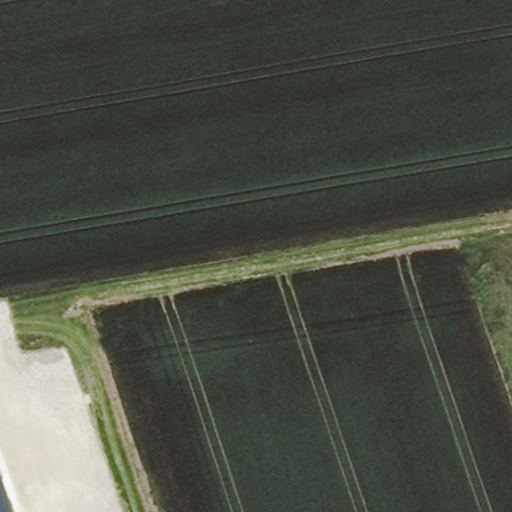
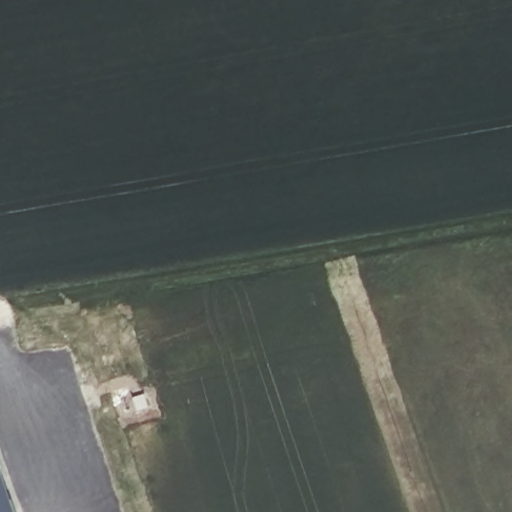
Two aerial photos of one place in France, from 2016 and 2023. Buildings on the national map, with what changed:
unchanged [(0,512),(0,471),(14,512),(0,512)]

